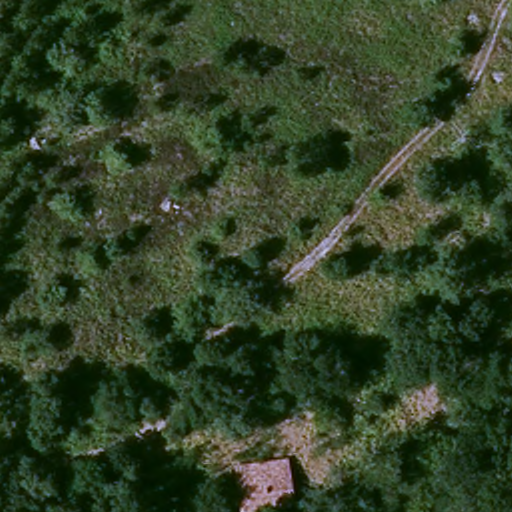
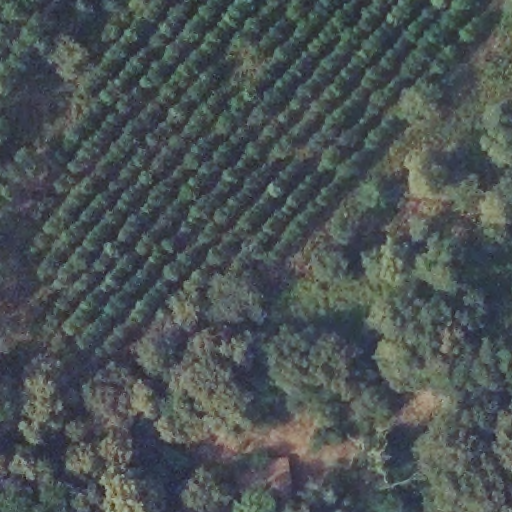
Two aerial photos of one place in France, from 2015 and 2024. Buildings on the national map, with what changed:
unchanged [(268,473),(266,458),(288,455),(298,500),(245,508),(241,476),(268,473)]

